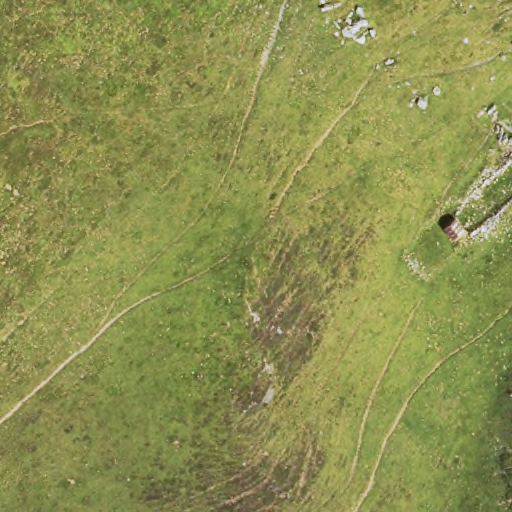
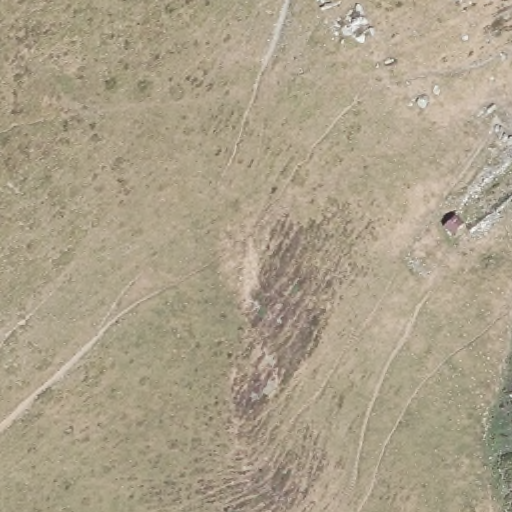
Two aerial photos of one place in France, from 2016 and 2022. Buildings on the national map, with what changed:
unchanged [(464,219),(454,230),(444,220),(453,211),(464,219)]

